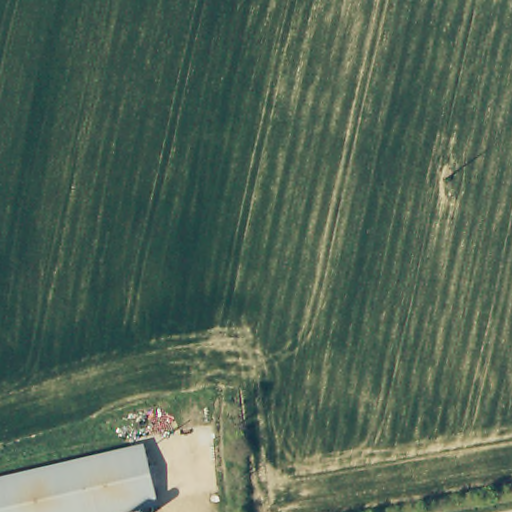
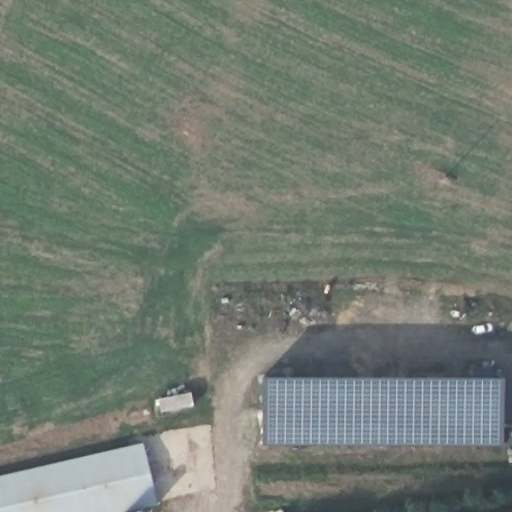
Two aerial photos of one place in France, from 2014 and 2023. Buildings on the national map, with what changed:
new [(261,376),(504,376),(504,446),(262,444),(261,376)]
unchanged [(135,449),(148,507),(127,512),(41,512),(32,472),(135,449)]
unchanged [(0,480),(32,472),(41,512),(0,512),(0,480)]

